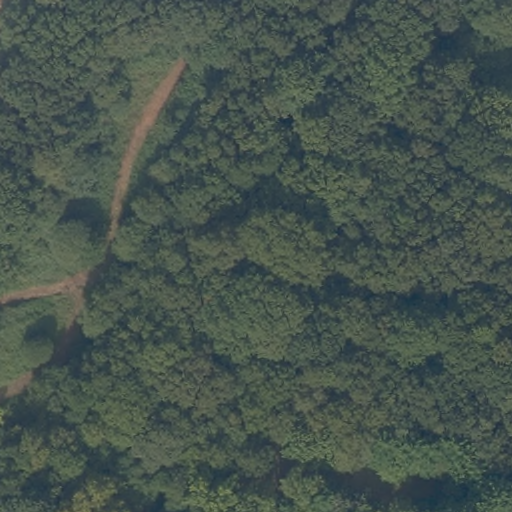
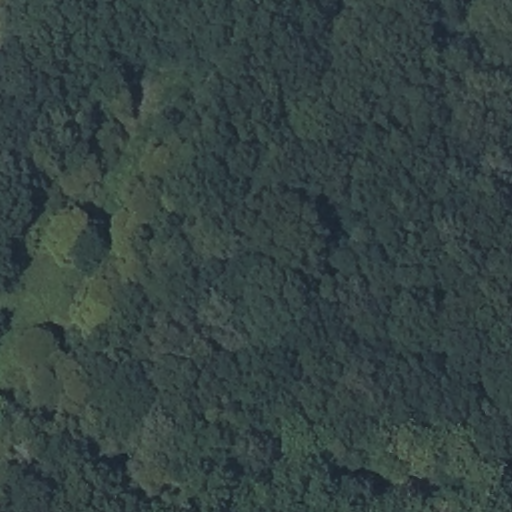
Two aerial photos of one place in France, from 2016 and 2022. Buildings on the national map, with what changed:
[]

